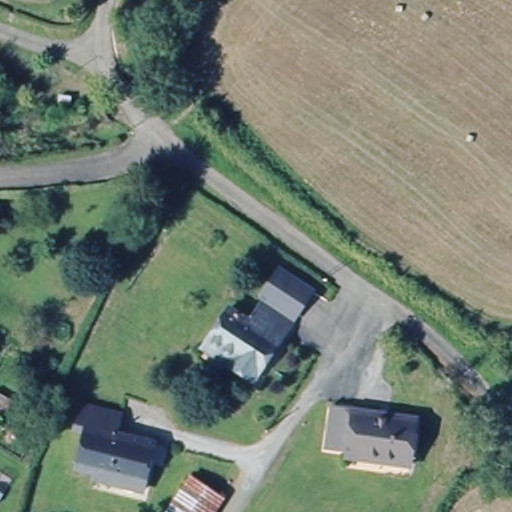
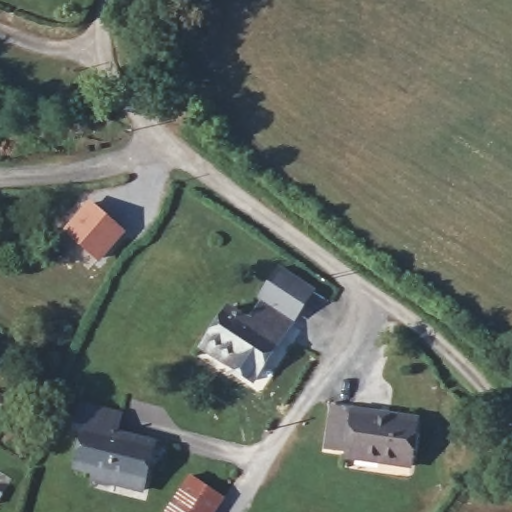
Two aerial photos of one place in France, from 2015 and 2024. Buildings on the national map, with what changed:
new [(125,233),(98,264),(62,231),(90,200),(125,233)]
unchanged [(320,292),(301,320),(267,295),(285,268),(320,292)]
unchanged [(209,341),(230,308),(254,323),(267,305),(299,327),(257,388),(231,369),(203,352),(209,341)]
unchanged [(0,339),(7,344),(0,356),(0,339)]
unchanged [(124,429),(160,439),(144,488),(95,474),(96,468),(82,462),(94,424),(85,422),(91,399),(129,412),(124,429)]
unchanged [(336,459),(343,418),(426,426),(418,481),(401,479),(353,472),(354,462),(336,459)]
unchanged [(223,500),(215,512),(168,512),(191,479),(223,500)]

